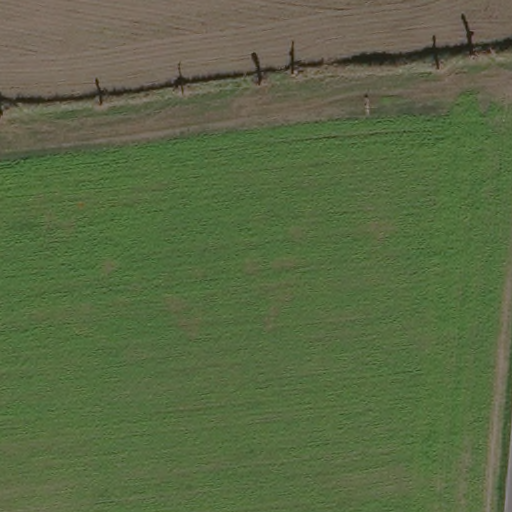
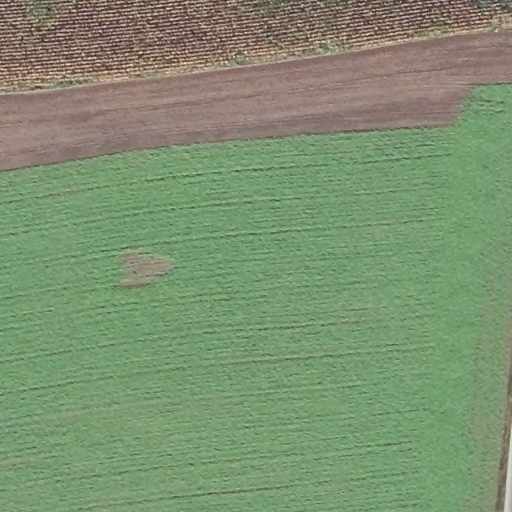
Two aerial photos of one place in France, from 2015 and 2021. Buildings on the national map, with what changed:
[]

